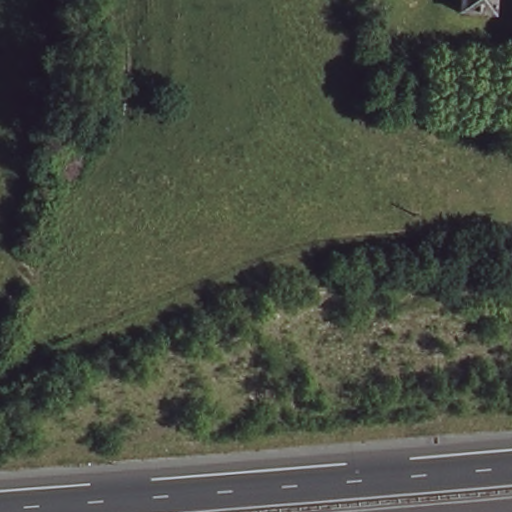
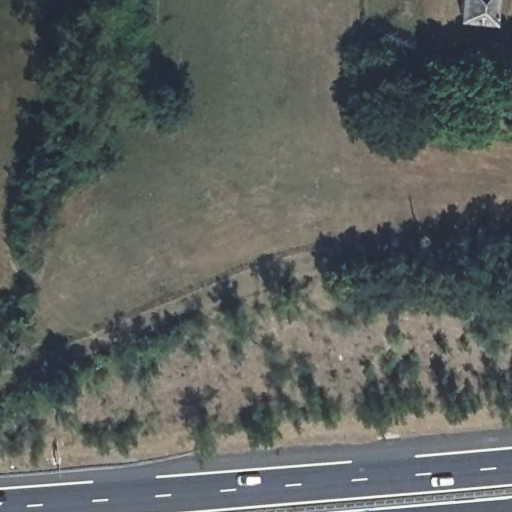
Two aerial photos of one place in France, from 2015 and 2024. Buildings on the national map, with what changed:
unchanged [(457,0),(490,0),(489,16),(456,13),(457,0)]

